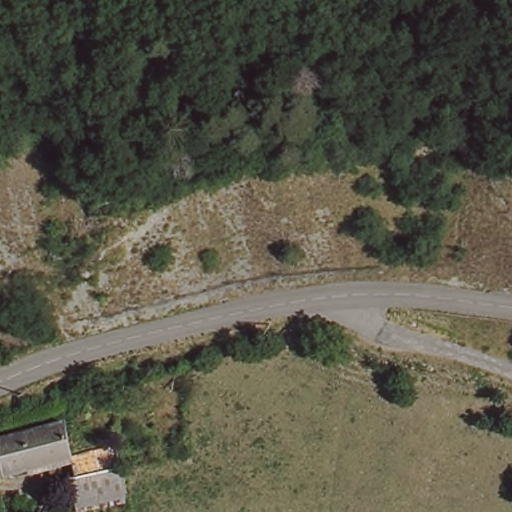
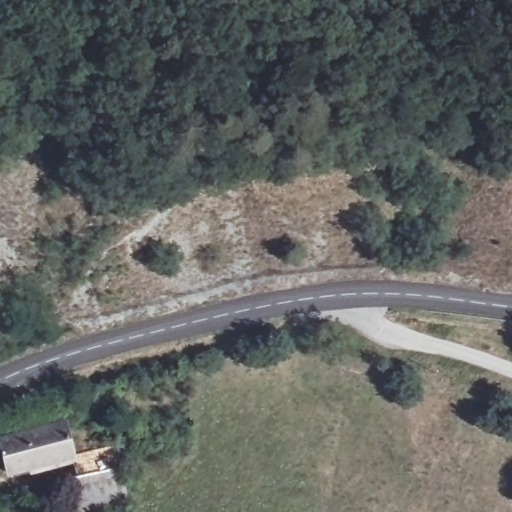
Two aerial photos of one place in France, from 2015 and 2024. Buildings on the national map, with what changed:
unchanged [(75,457),(118,447),(130,504),(92,512),(75,512),(67,472),(6,486),(0,458),(0,438),(65,422),(75,457)]

